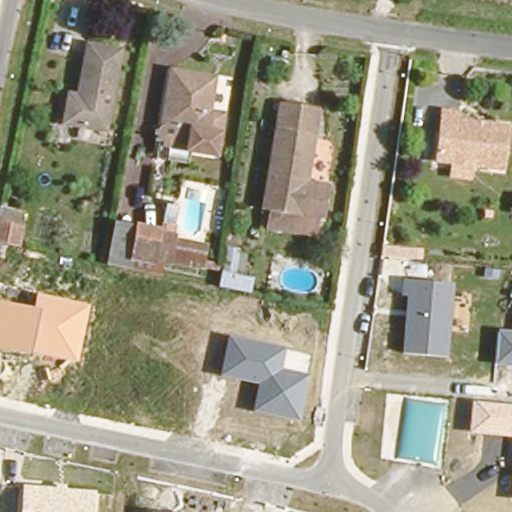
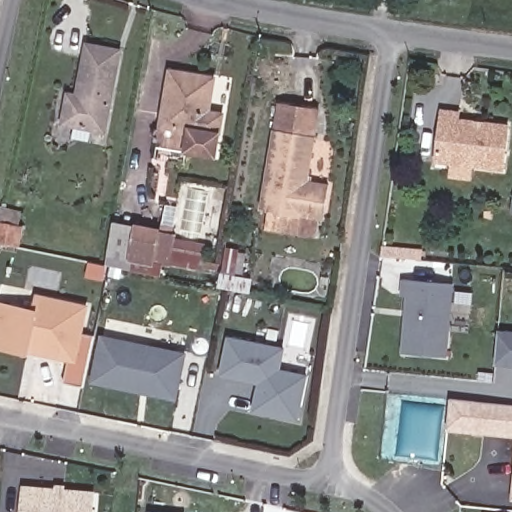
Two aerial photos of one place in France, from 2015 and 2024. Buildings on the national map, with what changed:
unchanged [(87,46),(120,52),(105,132),(62,124),(67,95),(77,96),(87,46)]
unchanged [(165,137),(156,136),(158,126),(161,126),(161,123),(170,68),(214,75),(209,109),(222,111),(216,150),(185,145),(165,141),(165,137)]
unchanged [(264,227),(267,207),(261,206),(278,100),(320,106),(308,178),(328,181),(322,216),(303,213),(300,232),(264,227)]
unchanged [(497,172),(431,165),(432,158),(436,115),(455,117),(455,125),(502,130),(498,165),(497,172)]
unchanged [(22,227),(19,248),(0,244),(0,222),(22,227)]
unchanged [(205,260),(219,262),(217,271),(204,269),(203,270),(173,265),(164,264),(161,276),(105,267),(114,222),(135,226),(135,223),(161,228),(162,223),(176,226),(175,233),(177,234),(175,239),(207,244),(205,260)]
unchanged [(400,296),(402,279),(453,283),(447,357),(401,354),(406,297),(400,296)]
unchanged [(0,346),(0,304),(35,312),(39,297),(86,308),(80,333),(95,336),(84,388),(64,383),(69,361),(27,352),(0,346)]
unchanged [(498,330),(512,330),(512,365),(495,364),(498,330)]
unchanged [(308,375),(298,420),(251,411),(256,383),(218,375),(226,336),(285,348),(281,370),(308,375)]
new [(102,339),(183,356),(174,398),(94,381),(102,339)]
unchanged [(472,402),(512,405),(512,437),(468,434),(472,402)]
unchanged [(96,490),(95,512),(21,512),(23,486),(56,488),(56,485),(66,486),(66,489),(96,490)]
unchanged [(512,491),(512,501),(511,501),(512,491)]

